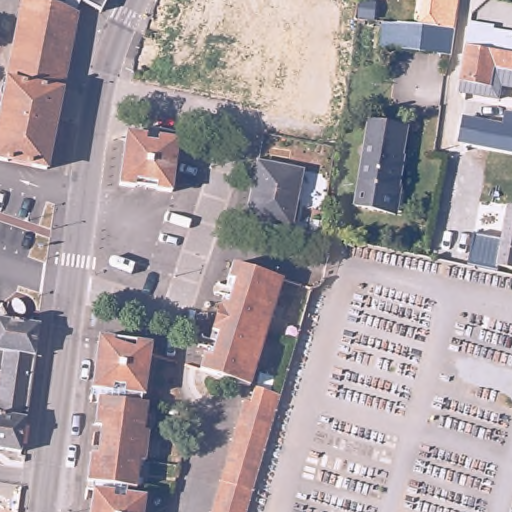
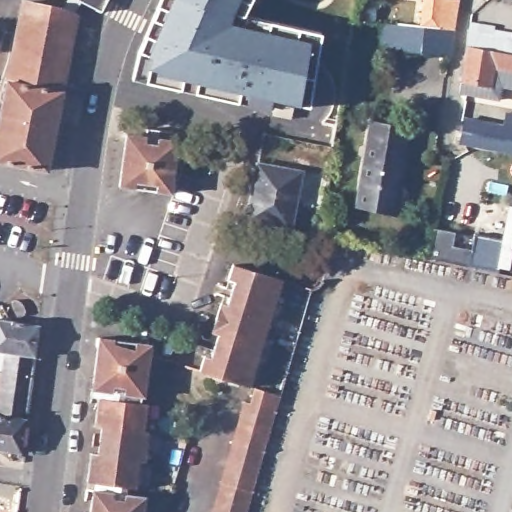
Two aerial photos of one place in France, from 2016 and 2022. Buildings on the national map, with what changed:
unchanged [(52,170),(0,161),(0,147),(18,52),(26,3),(58,8),(68,11),(74,0),(113,0),(106,13),(87,3),(81,16),(74,51),(65,101),(52,170)]
new [(244,16),(322,33),(309,106),(297,105),(271,98),(269,107),(237,100),(132,76),(138,51),(159,0),(252,0),(244,16)]
demolished [(179,16),(158,8),(161,0),(186,0),(179,16)]
unchanged [(451,56),(422,54),(405,53),(396,52),(382,51),(383,36),(397,37),(398,21),(419,24),(423,0),(442,0),(439,27),(455,29),(451,56)]
unchanged [(499,20),(499,24),(512,27),(512,68),(499,65),(499,69),(508,71),(503,96),(463,89),(469,42),(474,16),(499,20)]
demolished [(208,27),(259,38),(252,75),(200,65),(208,27)]
unchanged [(468,114),(507,121),(509,108),(512,109),(512,147),(464,139),(468,114)]
unchanged [(389,214),(366,209),(359,208),(372,121),(383,123),(411,127),(405,166),(407,166),(403,189),(399,216),(389,214)]
unchanged [(119,188),(125,136),(144,138),(144,131),(178,135),(177,143),(170,195),(154,193),(134,190),(119,188)]
unchanged [(305,168),(294,227),(249,218),(254,197),(261,158),(305,168)]
unchanged [(479,247),(505,252),(512,214),(512,264),(477,257),(479,247)]
unchanged [(436,249),(441,250),(439,256),(434,255),(436,249)]
unchanged [(201,341),(204,332),(215,335),(218,328),(228,297),(229,293),(217,289),(220,280),(232,283),(234,276),(239,261),(289,276),(255,380),(206,365),(211,350),(213,345),(201,341)]
unchanged [(39,326),(21,454),(0,450),(0,320),(11,321),(35,325),(39,326)]
unchanged [(95,484),(89,484),(93,456),(99,456),(102,429),(96,429),(99,405),(100,393),(94,392),(100,338),(119,341),(152,345),(150,355),(146,397),(143,397),(143,405),(150,406),(147,435),(142,435),(139,462),(143,462),(140,490),(131,489),(131,496),(148,499),(146,512),(92,512),(94,501),(95,484)]
unchanged [(258,398),(263,382),(285,389),(250,512),(217,512),(251,397),(258,398)]

